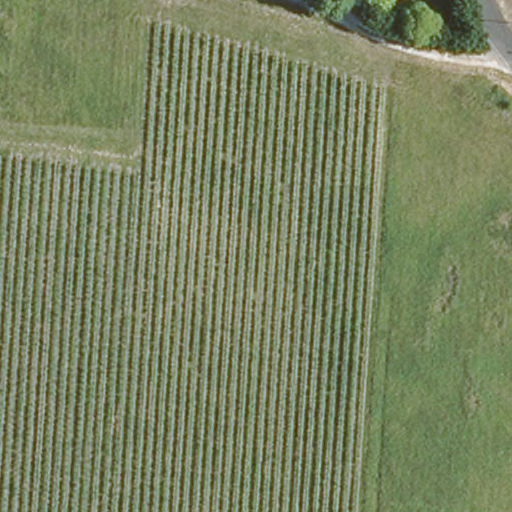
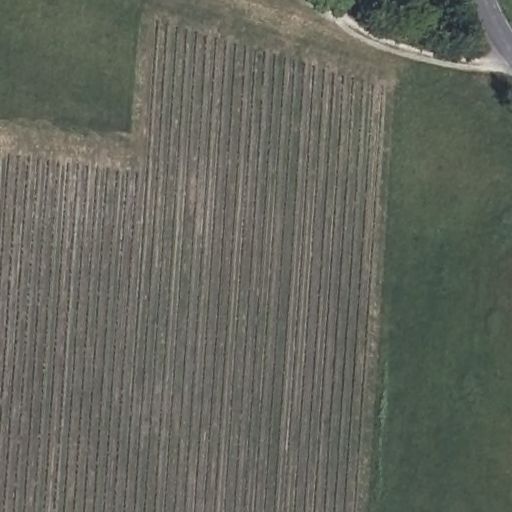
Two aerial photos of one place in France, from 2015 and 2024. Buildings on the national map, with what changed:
unchanged [(431,26),(433,9),(447,12),(447,17),(462,22),(459,34),(431,26)]

